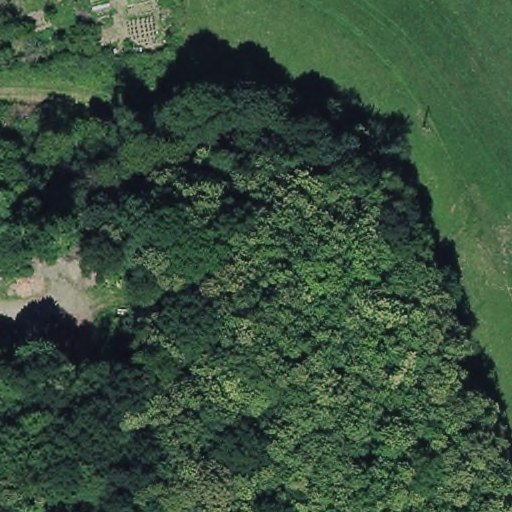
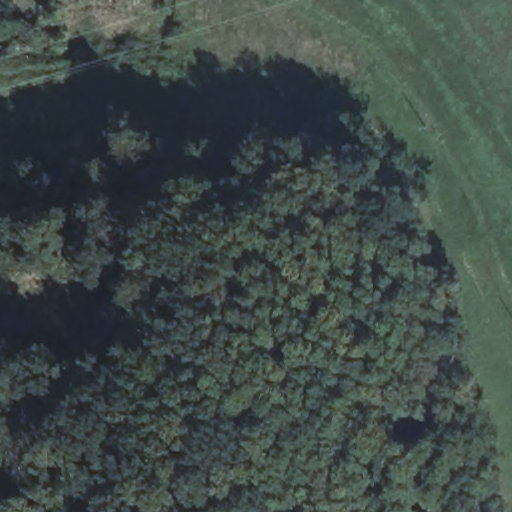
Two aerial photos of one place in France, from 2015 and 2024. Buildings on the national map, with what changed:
unchanged [(127,5),(126,0),(156,0),(127,5)]

